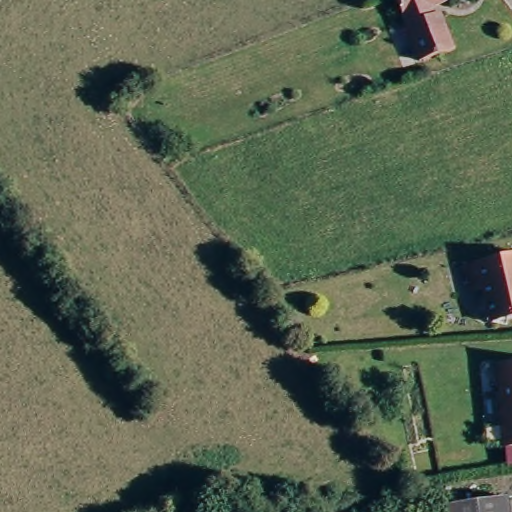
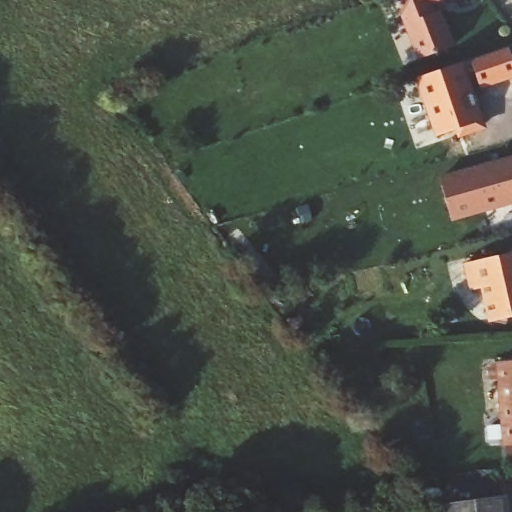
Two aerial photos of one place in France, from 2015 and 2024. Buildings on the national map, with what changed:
unchanged [(429,3),(432,12),(440,10),(453,46),(419,57),(398,0),(441,0),(429,3)]
new [(464,62),(486,129),(458,138),(456,130),(435,136),(417,77),(464,62)]
new [(439,176),(512,156),(512,205),(452,221),(439,176)]
unchanged [(486,285),(473,288),(468,261),(512,252),(512,313),(492,317),(486,285)]
unchanged [(499,362),(512,362),(512,447),(504,447),(499,362)]
unchanged [(507,496),(509,510),(509,512),(445,512),(444,503),(507,496)]

